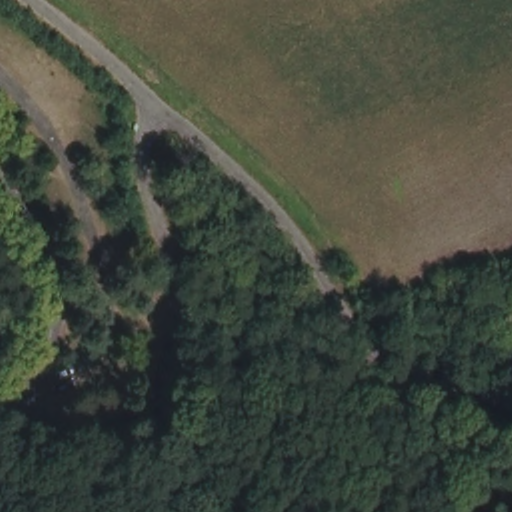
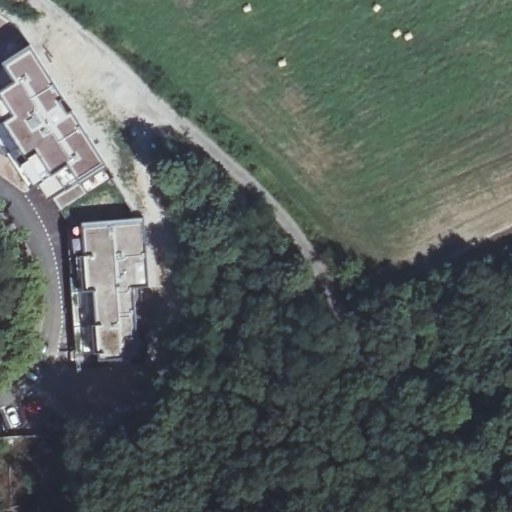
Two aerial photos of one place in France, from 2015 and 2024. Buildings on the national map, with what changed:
new [(0,49),(0,16),(20,33),(0,49)]
new [(0,61),(29,43),(70,105),(109,169),(81,185),(47,201),(35,185),(31,188),(0,140),(0,89),(13,80),(0,61)]
new [(80,236),(80,223),(142,218),(148,285),(134,286),(137,356),(97,359),(97,356),(92,288),(82,288),(76,236),(80,236)]
new [(82,288),(92,288),(97,356),(77,357),(72,289),(82,288)]

